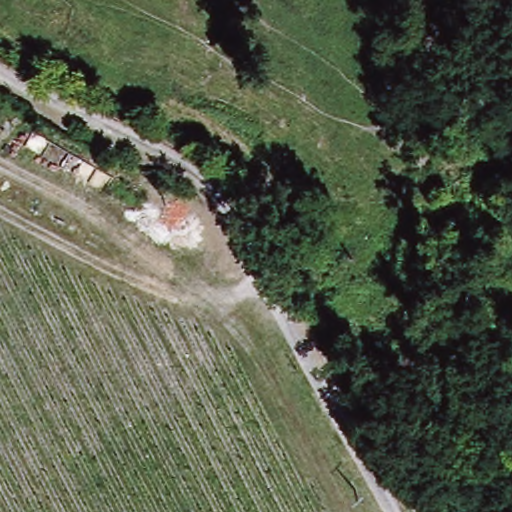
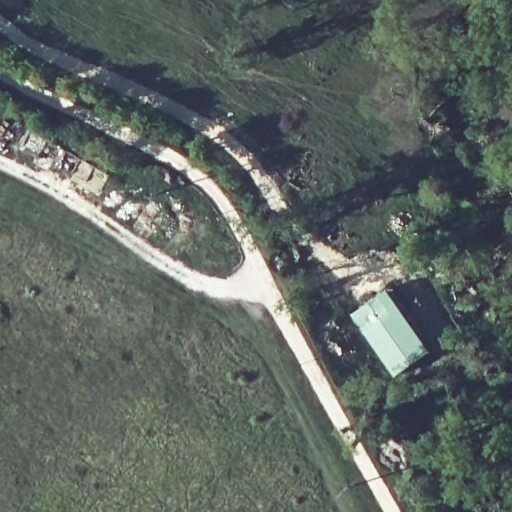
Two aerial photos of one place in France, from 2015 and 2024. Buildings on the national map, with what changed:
new [(387,287),(431,349),(395,375),(349,314),(387,287)]

